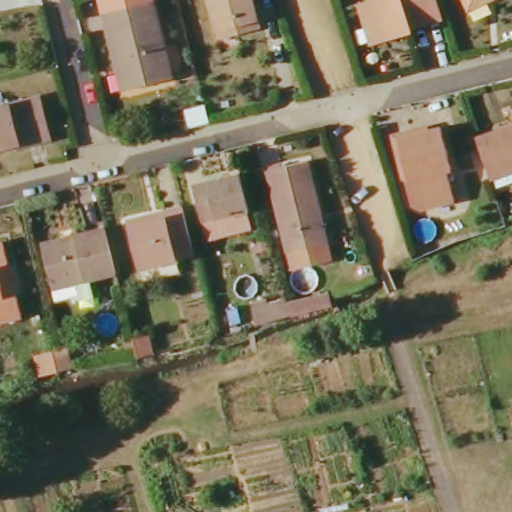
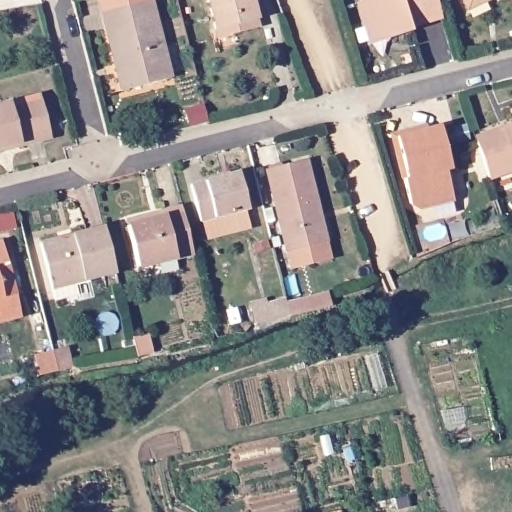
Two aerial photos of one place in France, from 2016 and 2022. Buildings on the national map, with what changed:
unchanged [(250,0),(255,18),(213,30),(204,0),(250,0)]
unchanged [(363,4),(375,2),(374,0),(432,0),(439,22),(421,26),(420,23),(406,26),(410,38),(388,44),(366,49),(355,7),(363,4)]
unchanged [(486,0),(464,11),(459,0),(486,0)]
unchanged [(102,15),(150,3),(167,79),(120,91),(102,15)]
unchanged [(36,95),(50,138),(19,145),(17,143),(0,147),(0,104),(36,95)]
unchanged [(512,106),(512,110),(511,106),(512,106)]
unchanged [(487,175),(474,139),(512,126),(512,167),(487,175)]
unchanged [(397,139),(442,129),(451,169),(447,171),(454,202),(419,209),(409,202),(397,139)]
unchanged [(329,260),(288,269),(285,253),(281,230),(267,173),(306,163),(320,218),(312,220),(320,246),(326,244),(329,260)]
unchanged [(198,184),(241,173),(249,209),(207,220),(198,184)]
unchanged [(123,225),(160,216),(159,212),(178,208),(190,258),(134,271),(123,225)]
unchanged [(40,247),(101,233),(111,276),(82,282),(81,278),(49,285),(40,247)]
unchanged [(2,260),(10,295),(14,316),(0,319),(0,251),(2,260)]
unchanged [(288,305),(327,296),(329,304),(291,319),(252,328),(248,310),(287,301),(288,305)]
unchanged [(128,343),(143,339),(147,356),(147,359),(133,362),(131,358),(128,343)]
unchanged [(27,357),(45,353),(58,350),(63,373),(50,377),(49,375),(31,379),(27,357)]

